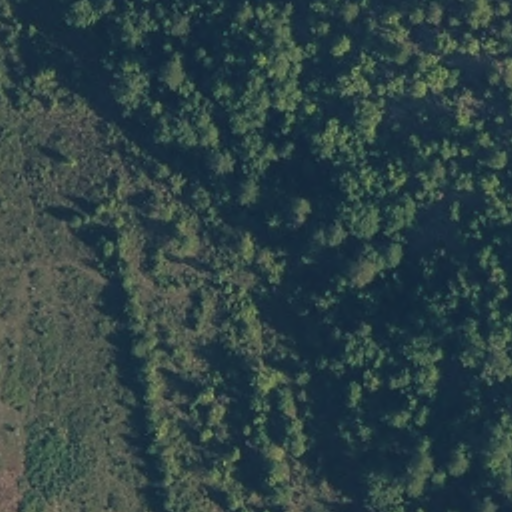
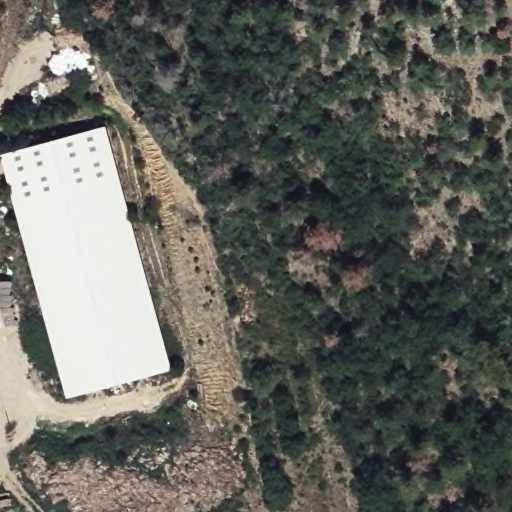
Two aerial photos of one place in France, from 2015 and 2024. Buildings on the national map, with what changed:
new [(3,154),(106,126),(171,369),(67,398),(3,154)]

